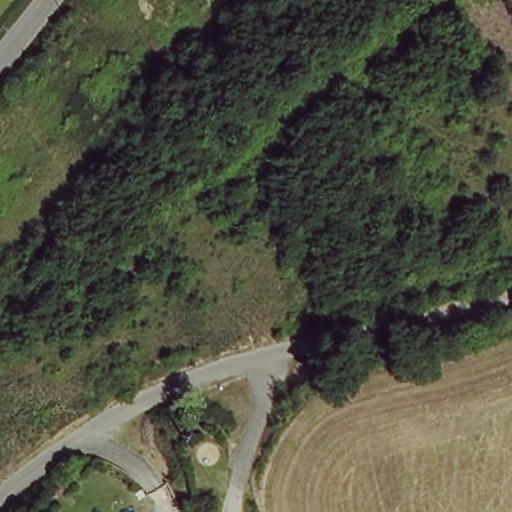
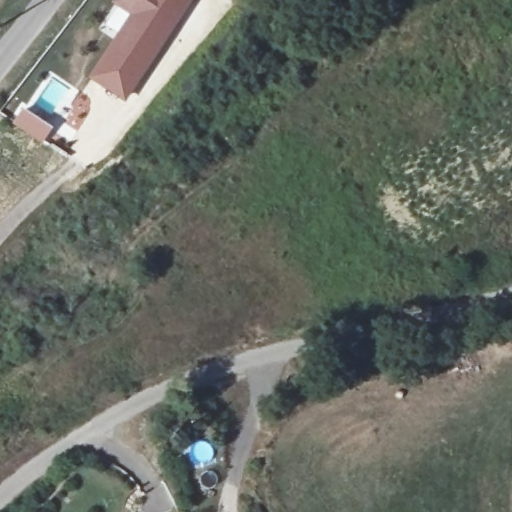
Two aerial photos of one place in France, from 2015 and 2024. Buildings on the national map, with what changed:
new [(93,77),(133,14),(115,1),(116,0),(187,0),(124,98),(93,77)]

